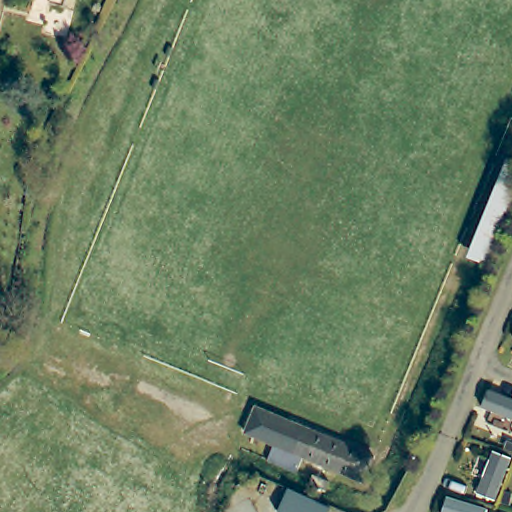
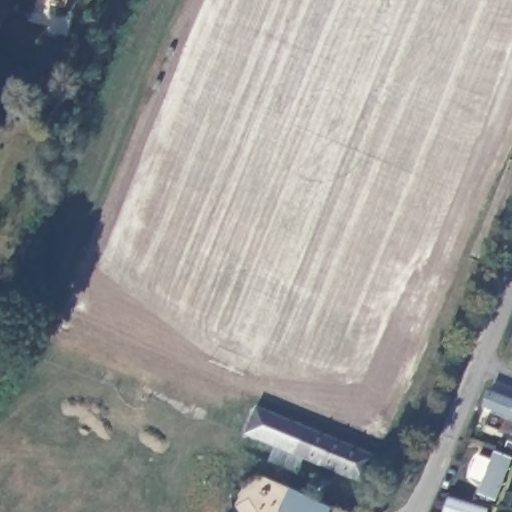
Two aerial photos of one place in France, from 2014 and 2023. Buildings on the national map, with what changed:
unchanged [(512,194),(481,267),(460,258),(499,165),(512,170),(512,194)]
unchanged [(268,464),(274,449),(245,437),(255,411),(373,459),(363,485),(303,461),(297,476),(268,464)]
unchanged [(329,480),(325,491),(310,484),(314,474),(329,480)]

